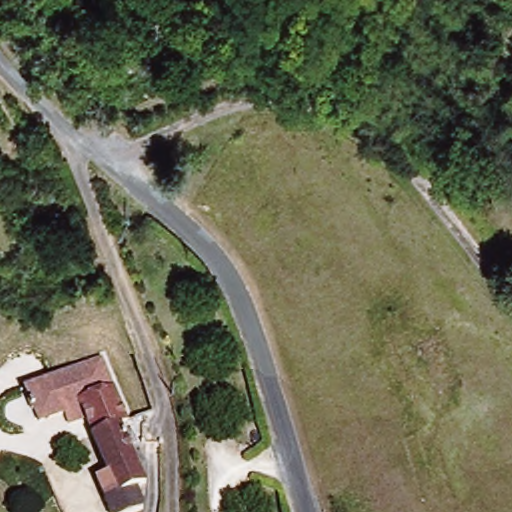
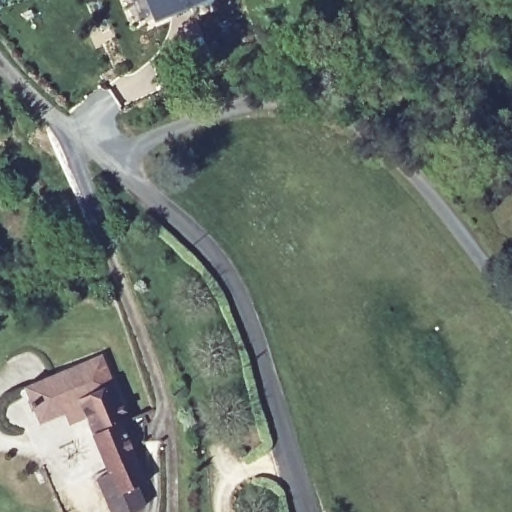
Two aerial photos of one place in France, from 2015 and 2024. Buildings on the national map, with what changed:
new [(147,0),(208,0),(156,20),(147,0)]
unchanged [(23,387),(103,354),(116,384),(154,481),(140,487),(148,507),(134,512),(110,512),(96,478),(110,473),(88,421),(71,425),(66,414),(39,426),(23,387)]

